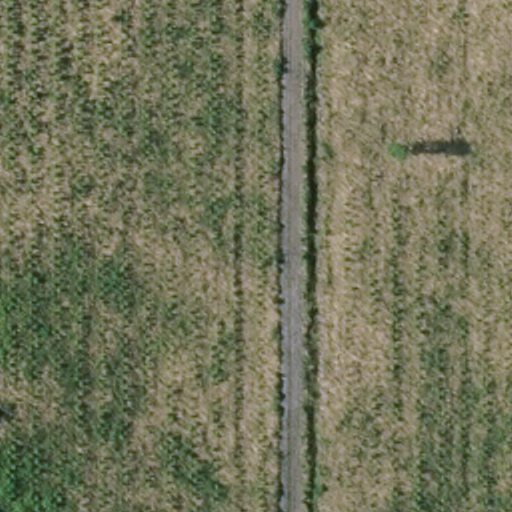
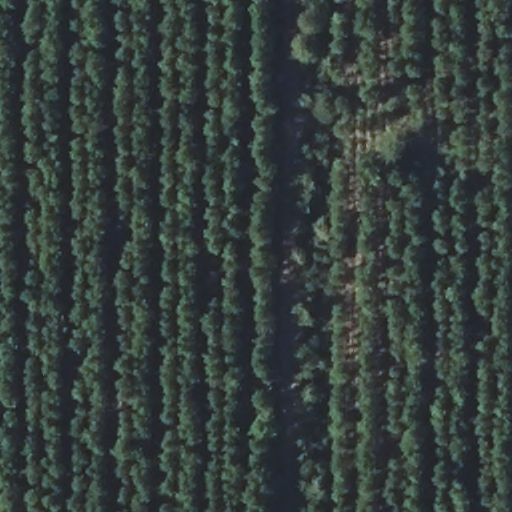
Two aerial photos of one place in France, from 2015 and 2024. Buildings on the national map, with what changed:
[]

